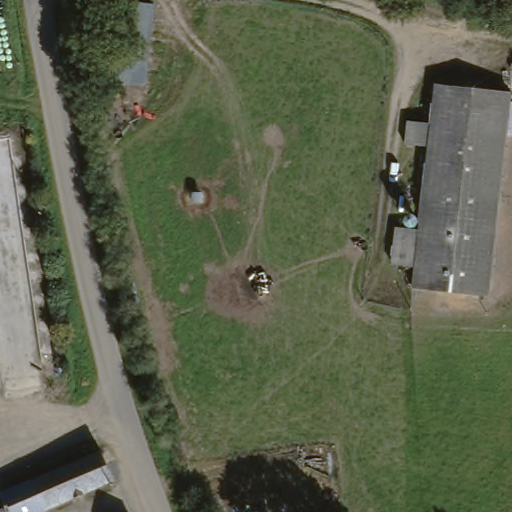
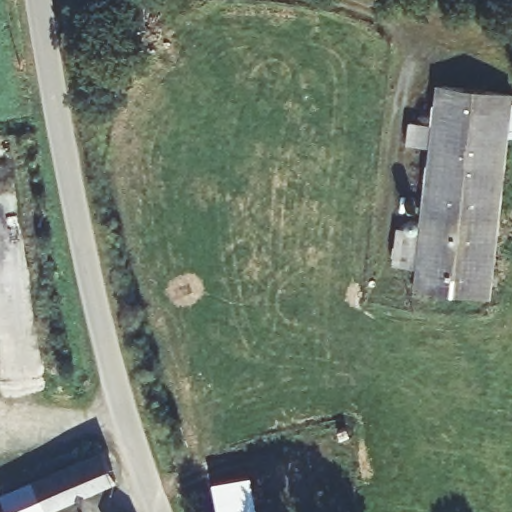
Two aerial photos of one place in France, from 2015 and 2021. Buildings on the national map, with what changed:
unchanged [(111,80),(120,0),(135,0),(160,2),(152,86),(111,80)]
unchanged [(512,93),(512,148),(494,297),(415,288),(417,271),(395,267),(400,228),(422,231),(433,148),(411,146),(415,122),(436,125),(441,84),(512,93)]
unchanged [(47,512),(0,512),(0,511),(10,506),(5,495),(107,447),(121,478),(47,512)]
new [(258,512),(218,512),(212,482),(251,473),(258,512)]

